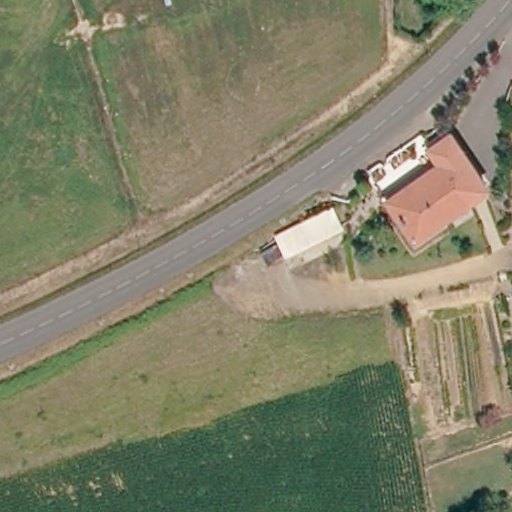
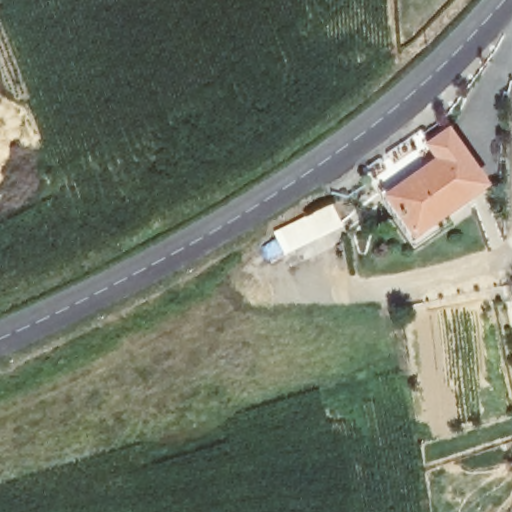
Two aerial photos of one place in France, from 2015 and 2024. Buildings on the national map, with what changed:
unchanged [(465,195),(413,231),(386,193),(438,157),(428,142),(447,129),(484,181),(465,195)]
unchanged [(288,257),(279,239),(279,238),(336,210),(345,228),(288,257)]

